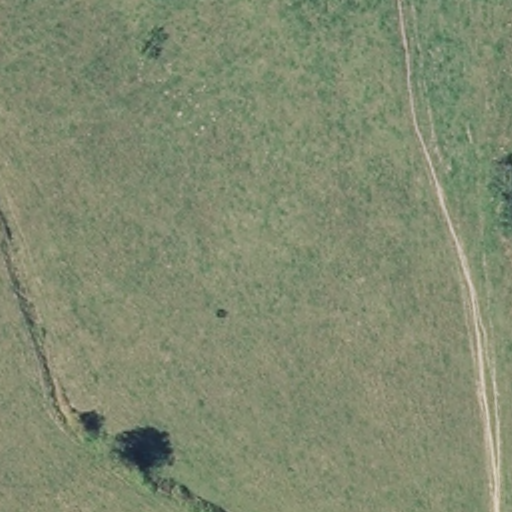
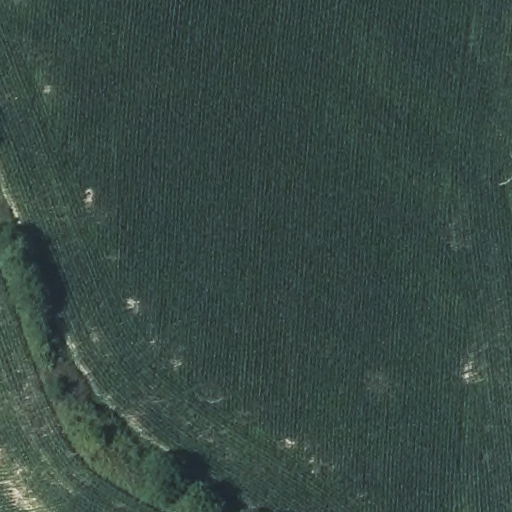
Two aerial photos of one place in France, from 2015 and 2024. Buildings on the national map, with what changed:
[]

